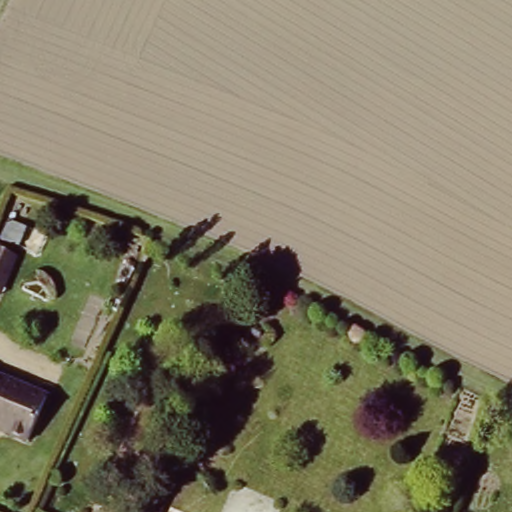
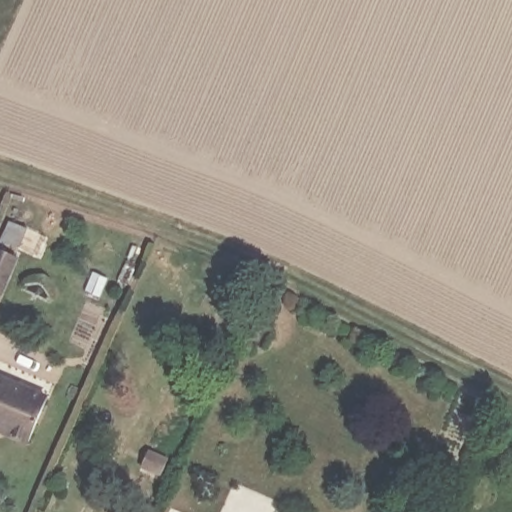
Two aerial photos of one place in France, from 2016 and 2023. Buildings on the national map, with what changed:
unchanged [(10,222),(28,229),(17,258),(2,296),(0,295),(0,243),(10,222)]
unchanged [(30,392),(46,398),(27,440),(12,433),(2,429),(0,428),(0,380),(30,392)]
unchanged [(159,474),(142,467),(147,453),(165,461),(159,474)]

